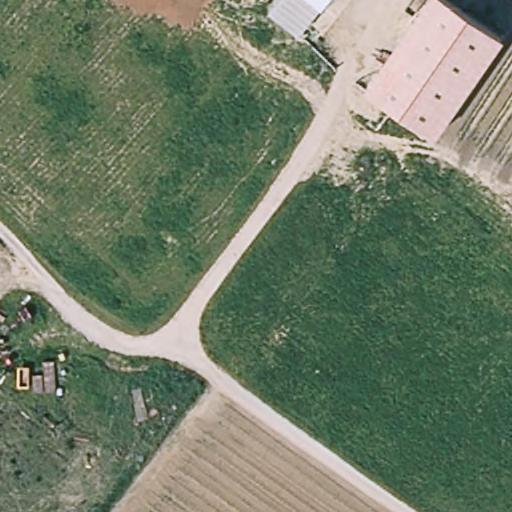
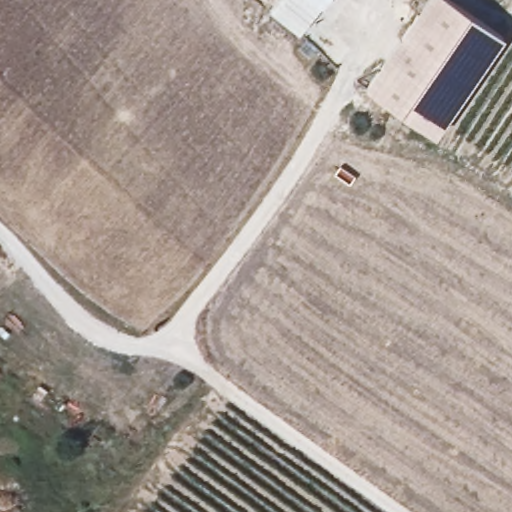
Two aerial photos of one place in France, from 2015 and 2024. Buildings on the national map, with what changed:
unchanged [(335,0),(311,35),(277,11),(284,0),(335,0)]
unchanged [(424,0),(451,0),(504,36),(435,135),(365,87),(424,0)]

